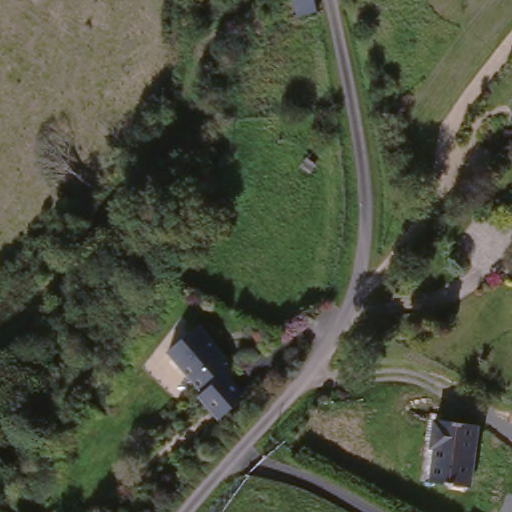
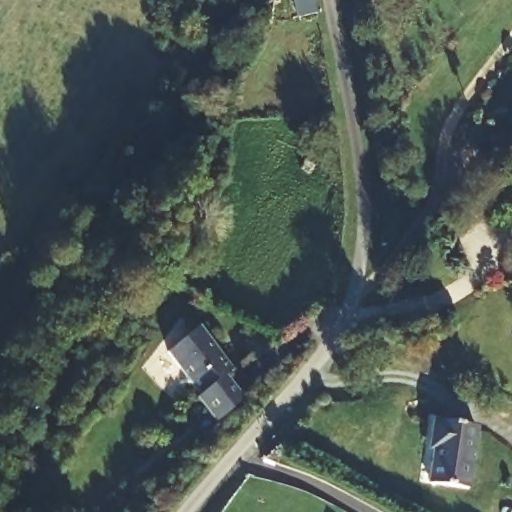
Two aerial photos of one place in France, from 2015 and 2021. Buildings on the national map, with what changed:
unchanged [(287,0),(320,0),(323,15),(287,16),(287,0)]
unchanged [(234,372),(228,378),(251,398),(225,423),(207,406),(211,403),(166,362),(193,335),(234,372)]
unchanged [(478,497),(435,491),(441,456),(422,454),(427,422),(488,434),(478,497)]

